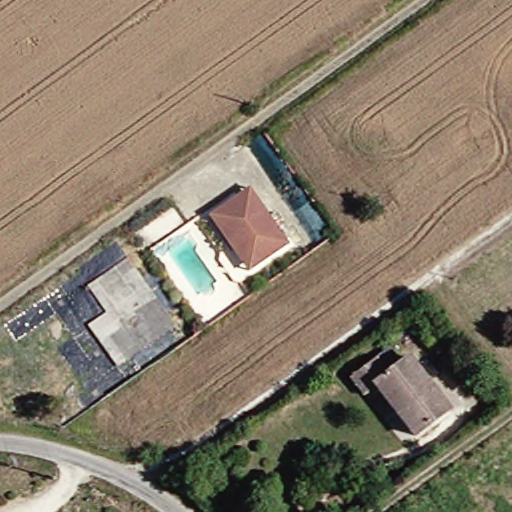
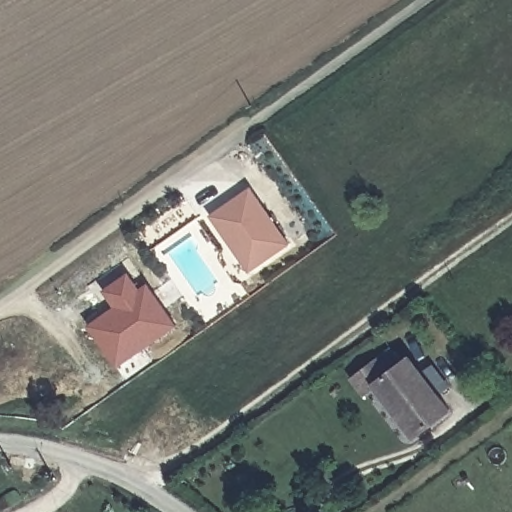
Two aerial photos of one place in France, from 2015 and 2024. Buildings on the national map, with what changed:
unchanged [(239,250),(215,217),(240,199),(254,189),(270,211),(293,244),(274,258),(254,272),(239,250)]
new [(114,308),(102,290),(129,273),(140,289),(149,283),(177,327),(117,368),(88,326),(114,308)]
unchanged [(453,409),(418,437),(379,386),(369,394),(357,379),(382,361),(393,374),(414,359),(453,409)]

